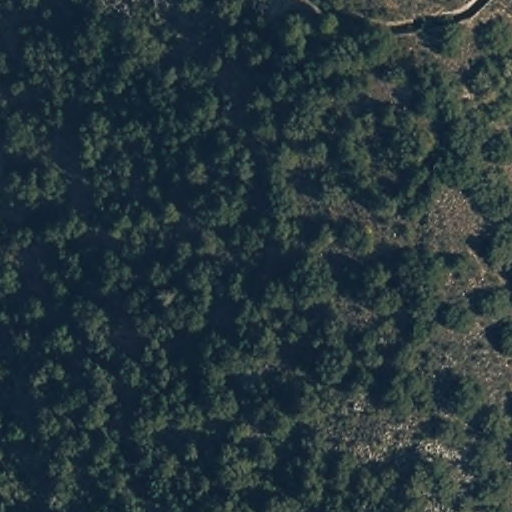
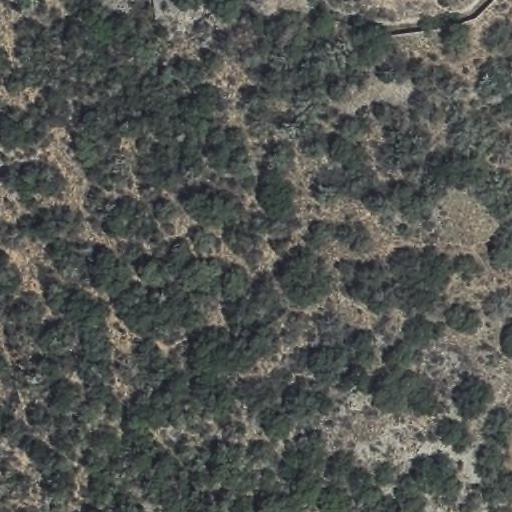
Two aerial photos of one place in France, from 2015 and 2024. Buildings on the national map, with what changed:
unchanged [(468,8),(464,9),(435,15),(399,24),(393,24),(387,23),(376,20),(341,9),(331,4),(329,2),(327,0),(476,0),(471,5),(468,8)]

